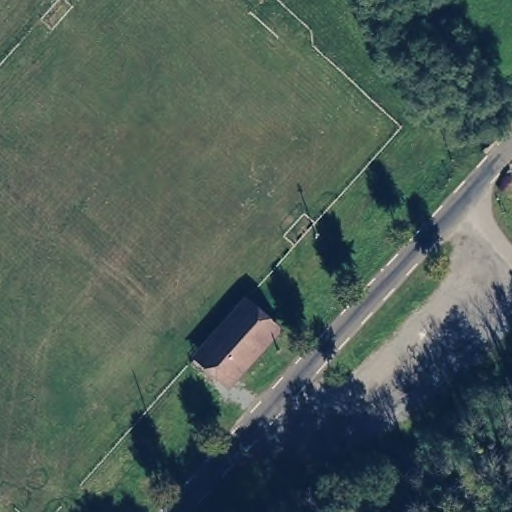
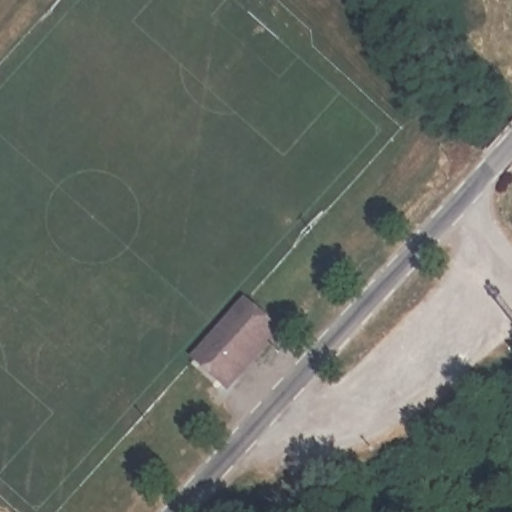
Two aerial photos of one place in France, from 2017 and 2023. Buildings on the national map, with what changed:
unchanged [(246,295),(285,335),(225,395),(187,359),(246,295)]

